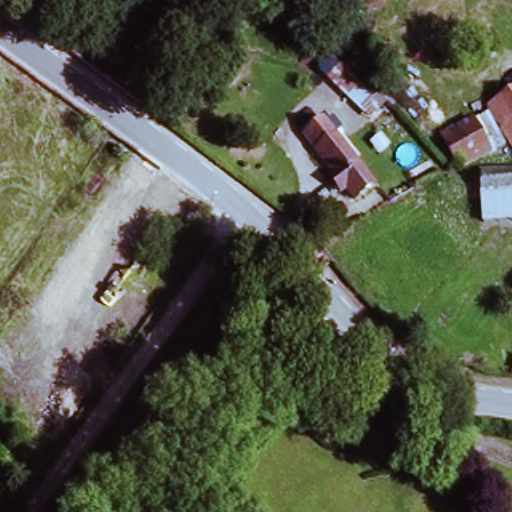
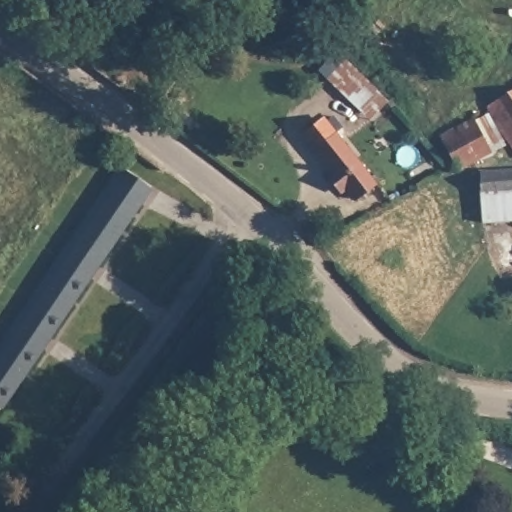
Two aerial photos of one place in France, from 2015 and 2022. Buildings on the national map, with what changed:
unchanged [(329,79),(346,63),(373,86),(356,109),(329,79)]
unchanged [(489,102),(512,89),(512,140),(489,102)]
unchanged [(369,224),(318,159),(301,138),(329,113),(344,128),(332,139),(336,143),(389,208),(369,224)]
unchanged [(438,134),(473,119),(489,156),(457,171),(438,134)]
demolished [(52,324),(30,305),(125,183),(118,179),(133,154),(143,161),(168,181),(52,324)]
new [(512,165),(512,218),(481,220),(483,164),(512,165)]
demolished [(512,164),(512,192),(508,192),(508,164),(512,164)]
new [(59,324),(36,305),(63,264),(58,263),(68,245),(74,249),(123,174),(149,190),(59,324)]
new [(0,409),(0,358),(14,337),(10,334),(20,317),(26,320),(36,305),(59,324),(3,410),(0,409)]

